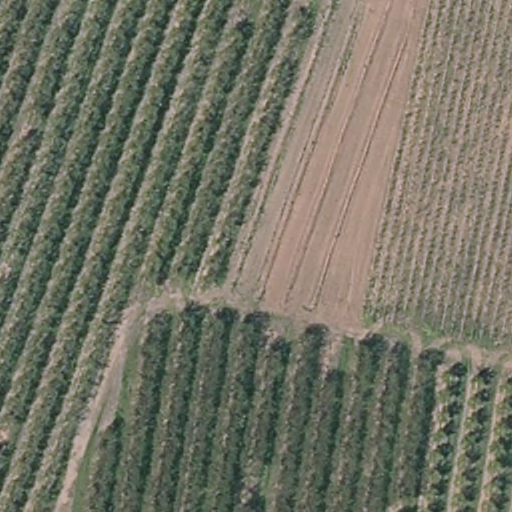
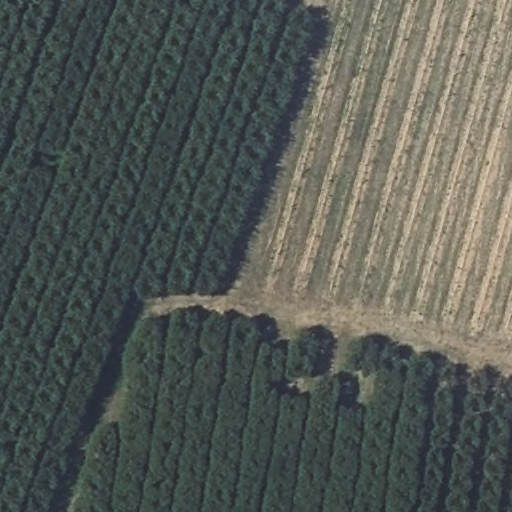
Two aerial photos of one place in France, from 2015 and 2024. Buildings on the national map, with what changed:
[]

